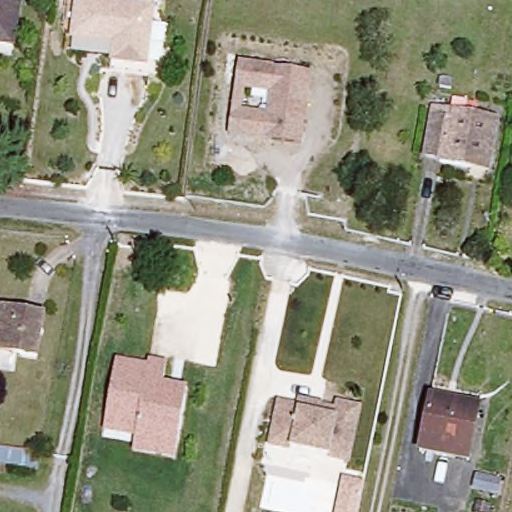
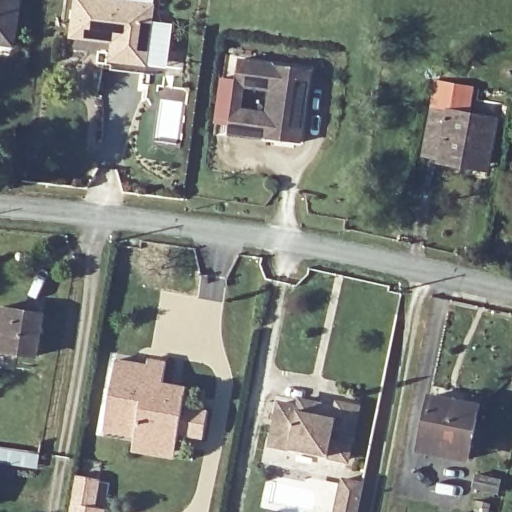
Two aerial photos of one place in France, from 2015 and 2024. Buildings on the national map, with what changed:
unchanged [(0,41),(0,0),(20,0),(13,44),(0,41)]
unchanged [(155,5),(150,63),(109,63),(110,51),(69,46),(74,0),(108,0),(155,5)]
unchanged [(300,146),(226,136),(237,62),(309,72),(305,108),(303,121),(300,146)]
unchanged [(445,162),(446,157),(428,153),(437,110),(498,122),(488,171),(445,162)]
unchanged [(0,347),(0,306),(45,315),(38,355),(0,347)]
unchanged [(135,454),(137,438),(105,433),(118,363),(149,368),(150,362),(168,365),(165,386),(188,390),(187,398),(180,445),(177,461),(135,454)]
unchanged [(432,393),(483,404),(472,457),(422,447),(432,393)]
unchanged [(339,406),(359,409),(350,462),(274,448),(280,408),(300,410),(301,404),(320,406),(320,410),(338,412),(339,406)]
unchanged [(41,453),(39,474),(0,465),(0,450),(41,453)]
new [(84,462),(102,465),(99,482),(93,510),(103,512),(70,512),(76,479),(81,479),(84,462)]
unchanged [(335,512),(341,476),(365,482),(359,512),(335,512)]

